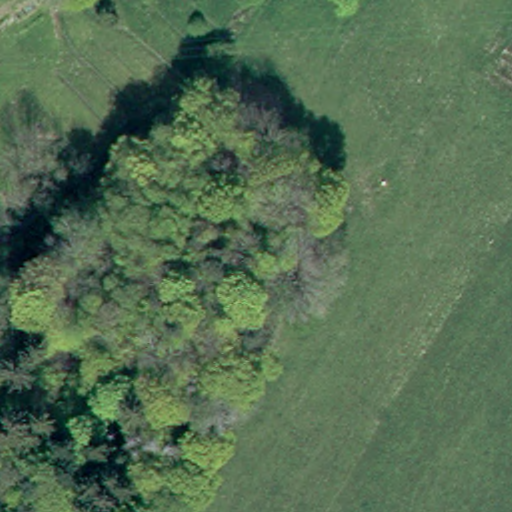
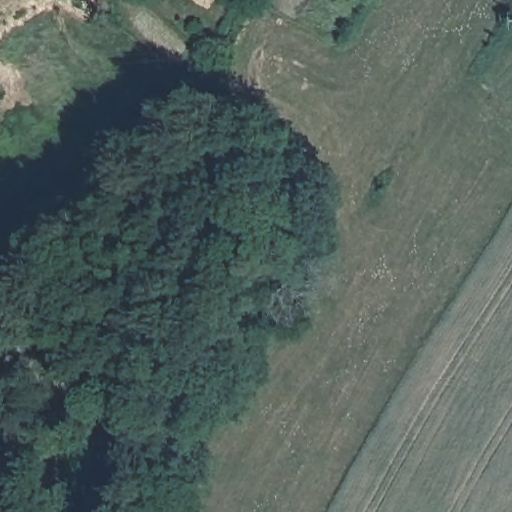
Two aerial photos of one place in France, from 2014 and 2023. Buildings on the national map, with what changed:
[]

